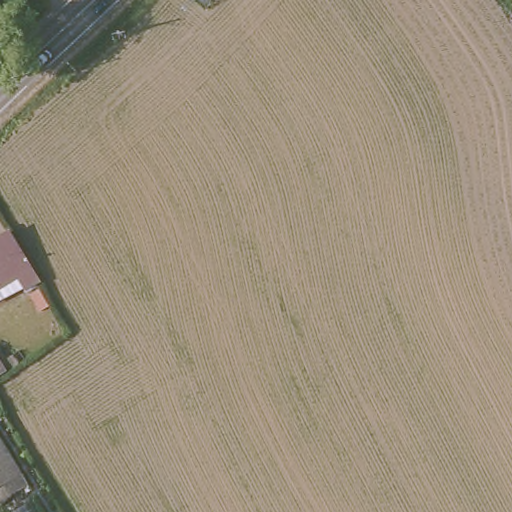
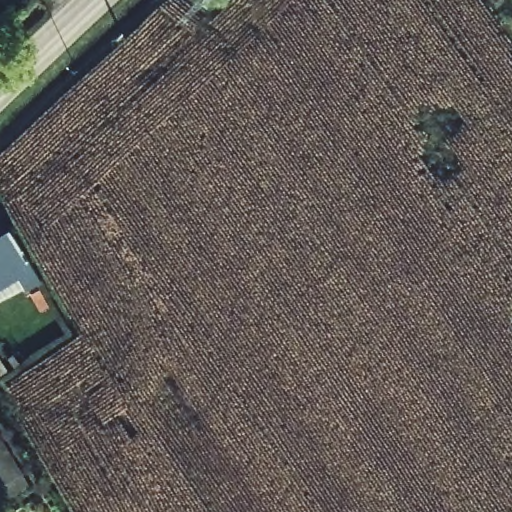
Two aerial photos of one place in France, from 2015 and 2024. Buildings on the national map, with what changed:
unchanged [(34,284),(25,289),(18,280),(0,291),(0,246),(10,240),(32,281),(34,284)]
unchanged [(0,437),(30,478),(0,501),(0,437)]

